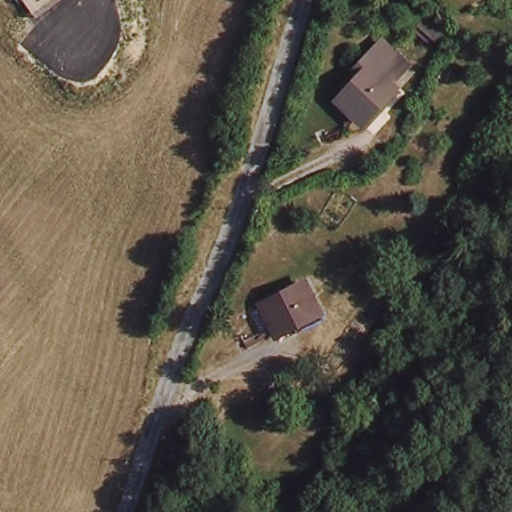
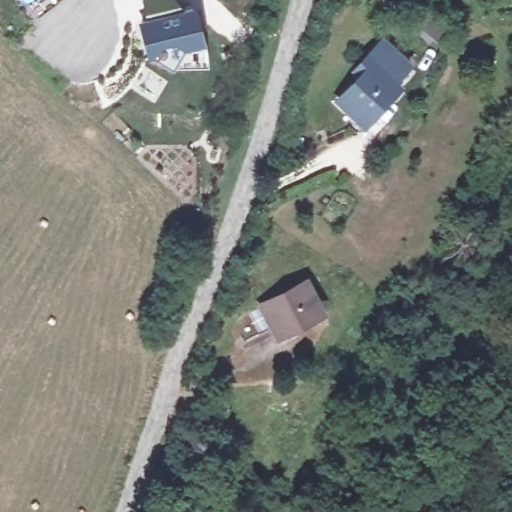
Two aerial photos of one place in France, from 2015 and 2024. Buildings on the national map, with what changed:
unchanged [(23,0),(62,0),(37,19),(23,0)]
new [(195,7),(207,45),(200,45),(202,64),(173,68),(154,57),(149,59),(139,19),(148,19),(142,0),(175,0),(185,10),(195,7)]
unchanged [(428,27),(445,43),(434,56),(417,40),(428,27)]
unchanged [(347,69),(360,54),(362,56),(378,39),(404,62),(390,79),(396,86),(361,126),(334,100),(355,77),(347,69)]
unchanged [(326,307),(280,331),(277,323),(265,330),(254,306),(312,277),(326,307)]

